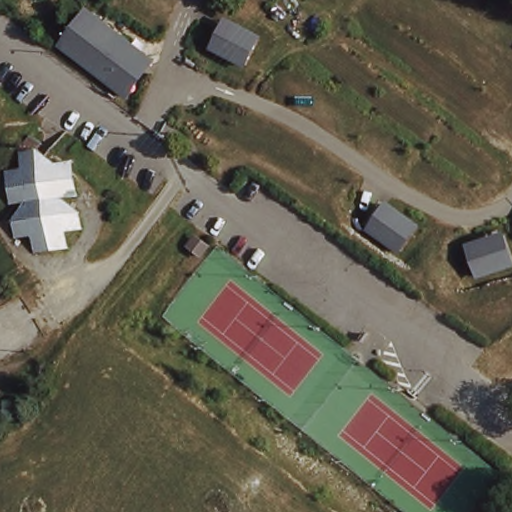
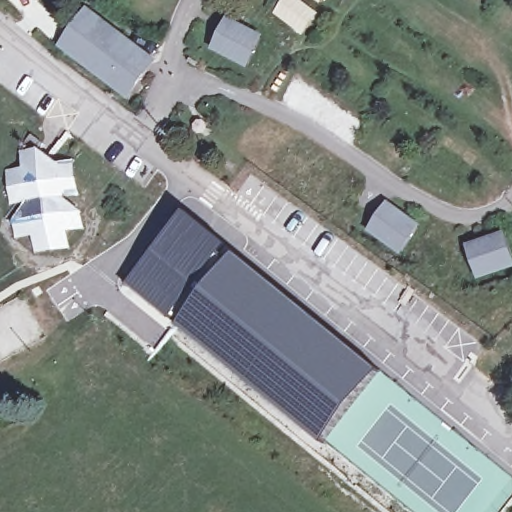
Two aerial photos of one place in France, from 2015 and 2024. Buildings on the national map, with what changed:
unchanged [(156,57),(128,99),(63,49),(93,10),(156,57)]
unchanged [(267,34),(250,65),(212,47),(231,18),(267,34)]
unchanged [(78,197),(61,197),(81,212),(82,229),(65,231),(67,248),(35,251),(31,237),(15,239),(11,220),(22,203),(10,205),(7,171),(20,169),(19,152),(32,136),(40,143),(36,150),(55,163),(73,161),(78,197)]
new [(381,364),(318,446),(120,277),(178,198),(381,364)]
unchanged [(422,224),(403,252),(368,231),(390,202),(422,224)]
unchanged [(507,233),(512,254),(512,266),(477,277),(468,244),(507,233)]

